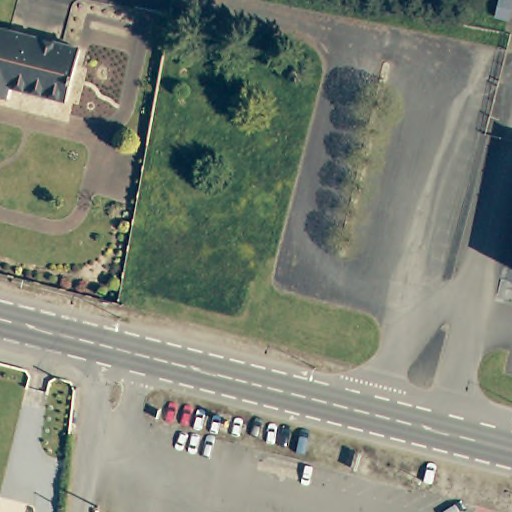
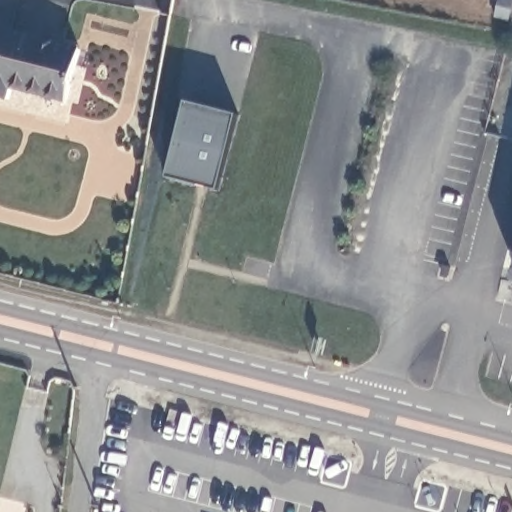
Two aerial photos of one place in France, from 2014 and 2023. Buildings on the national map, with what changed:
unchanged [(495,15),(498,0),(512,0),(512,1),(508,18),(495,15)]
unchanged [(80,48),(67,100),(10,85),(5,99),(0,97),(0,26),(80,48)]
new [(168,176),(186,101),(237,113),(217,190),(168,176)]

